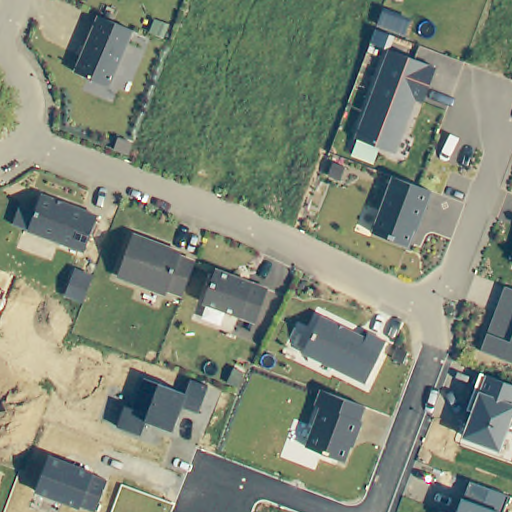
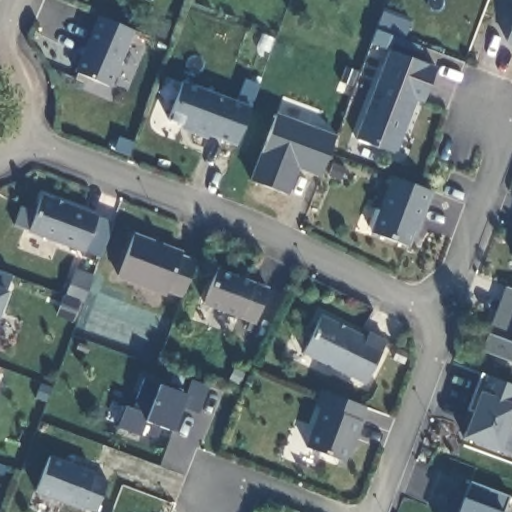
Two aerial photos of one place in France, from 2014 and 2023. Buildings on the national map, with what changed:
unchanged [(138,34),(114,89),(80,75),(105,19),(138,34)]
new [(512,29),(512,45),(507,42),(512,29)]
unchanged [(360,145),(394,57),(441,75),(430,103),(423,100),(416,120),(412,118),(408,126),(412,127),(400,160),(360,145)]
new [(207,134),(206,139),(181,127),(182,124),(168,119),(182,80),(250,105),(234,144),(207,134)]
new [(321,176),(298,167),(288,193),(250,180),(277,113),(336,135),(321,176)]
unchanged [(398,184),(422,193),(437,199),(425,229),(422,228),(412,254),(376,239),(398,184)]
unchanged [(101,219),(87,254),(31,232),(45,197),(101,219)]
unchanged [(136,238),(184,256),(183,260),(198,266),(187,293),(185,300),(170,293),(168,297),(121,278),(136,238)]
unchanged [(257,326),(206,306),(218,273),(270,293),(257,326)]
unchanged [(0,304),(0,290),(5,292),(0,304)]
unchanged [(484,359),(499,320),(509,295),(512,296),(512,370),(484,359)]
unchanged [(323,321),(368,344),(371,338),(388,347),(367,389),(304,357),(323,321)]
unchanged [(499,451),(462,436),(471,412),(467,410),(481,373),(512,384),(512,428),(512,429),(509,428),(499,451)]
unchanged [(128,398),(136,402),(145,380),(159,385),(186,395),(191,380),(208,387),(198,413),(182,406),(172,430),(145,421),(141,436),(117,427),(128,398)]
unchanged [(320,408),(315,405),(321,391),(365,406),(360,420),(363,422),(354,448),(350,449),(345,462),(306,446),(320,408)]
unchanged [(94,472),(92,476),(108,481),(95,512),(94,512),(81,507),(80,509),(36,493),(50,456),(94,472)]
unchanged [(509,512),(463,512),(473,486),(512,501),(512,503),(509,512)]

